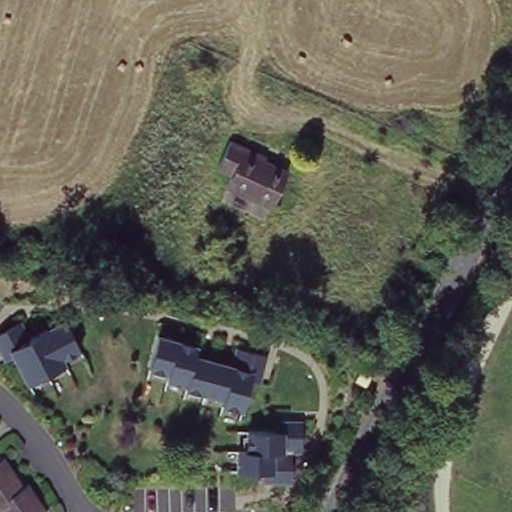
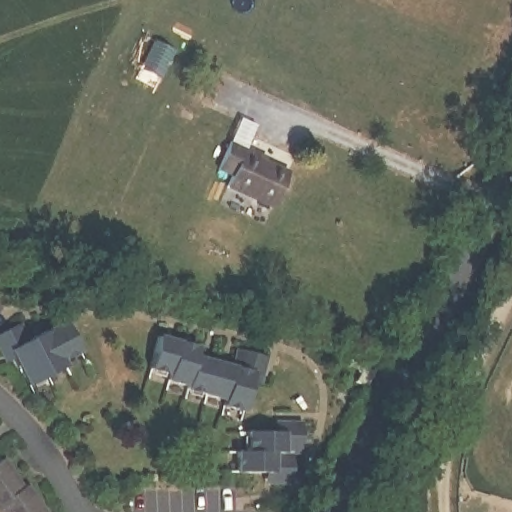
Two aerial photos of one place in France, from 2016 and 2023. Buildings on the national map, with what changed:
unchanged [(226,129),(246,139),(244,145),(291,166),(276,202),(227,178),(232,169),(212,160),(226,129)]
unchanged [(65,359),(69,366),(29,385),(14,357),(3,363),(0,357),(0,335),(20,324),(30,339),(66,320),(82,351),(65,359)]
unchanged [(257,384),(250,383),(242,413),(219,407),(221,399),(164,382),(165,375),(148,371),(158,334),(199,344),(197,354),(227,363),(233,347),(267,358),(257,384)]
unchanged [(263,484),(263,471),(236,471),(236,449),(246,449),(246,429),(271,431),(271,419),(305,419),(303,454),(292,454),(292,482),(263,484)]
unchanged [(22,487),(0,504),(0,457),(22,487)]
unchanged [(22,487),(27,484),(47,512),(1,512),(0,511),(0,504),(22,487)]

